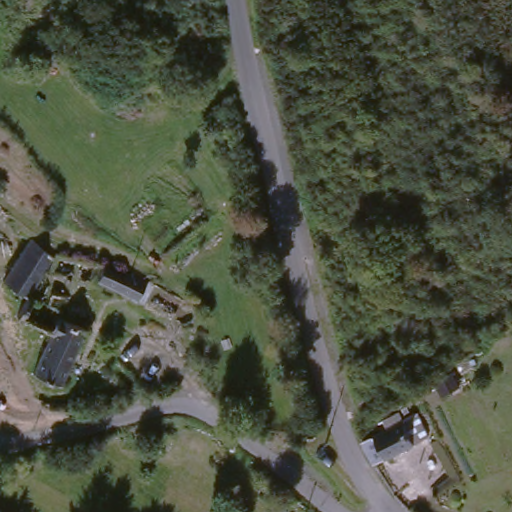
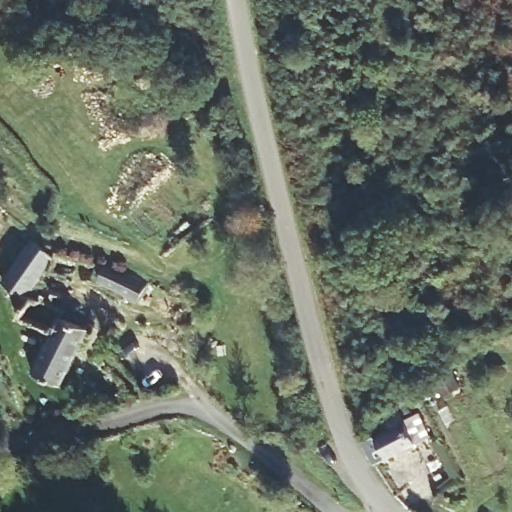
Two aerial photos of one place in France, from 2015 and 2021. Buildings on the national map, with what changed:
unchanged [(49,268),(38,290),(45,295),(43,306),(49,310),(43,335),(16,325),(24,305),(0,288),(0,285),(24,250),(49,268)]
unchanged [(133,282),(143,288),(133,309),(93,289),(103,268),(133,282)]
unchanged [(29,381),(32,375),(61,325),(89,343),(61,391),(56,397),(29,381)]
unchanged [(367,445),(405,426),(418,450),(380,468),(367,445)]

